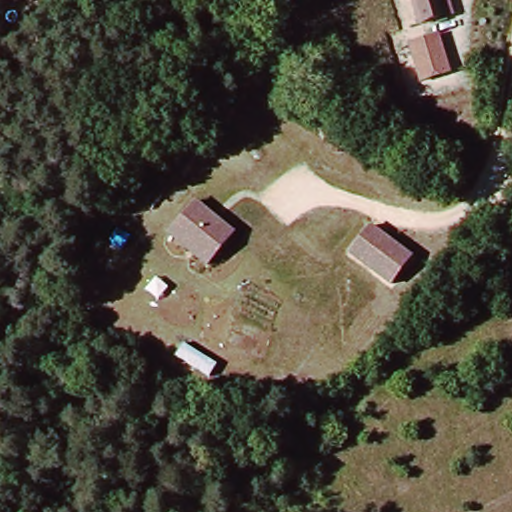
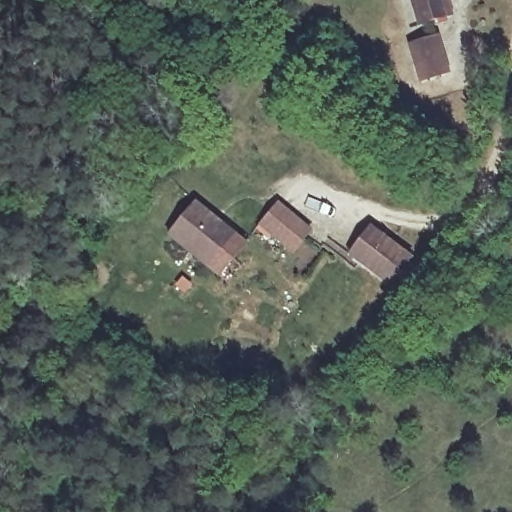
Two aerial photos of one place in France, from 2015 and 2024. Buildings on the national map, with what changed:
unchanged [(417,27),(410,0),(449,0),(455,16),(417,27)]
unchanged [(452,72),(420,82),(407,43),(440,32),(452,72)]
unchanged [(167,234),(196,198),(237,231),(207,267),(167,234)]
new [(277,205),(308,232),(291,253),(260,226),(277,205)]
unchanged [(347,252),(370,221),(415,256),(392,285),(347,252)]

